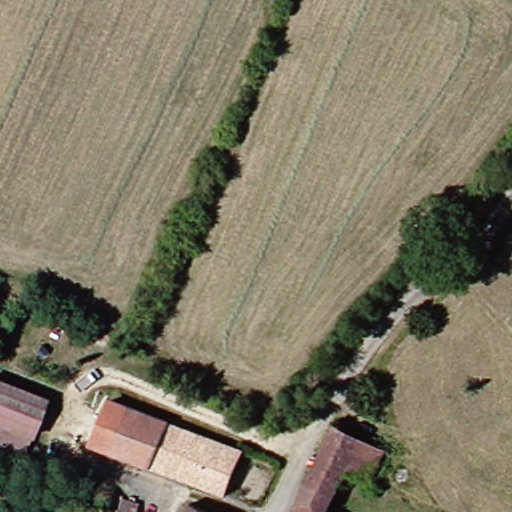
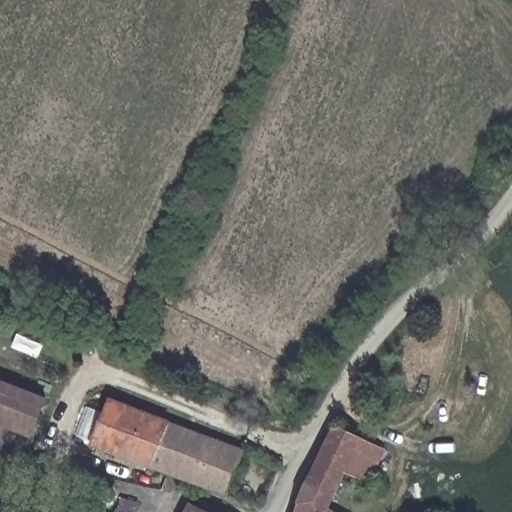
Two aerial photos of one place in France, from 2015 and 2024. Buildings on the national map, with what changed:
unchanged [(0,379),(52,401),(34,440),(0,426),(0,379)]
unchanged [(246,453),(227,496),(97,446),(112,400),(246,453)]
unchanged [(340,424),(385,447),(372,481),(347,468),(328,506),(338,512),(298,512),(307,488),(340,424)]
unchanged [(0,449),(0,426),(34,440),(27,461),(0,449)]
unchanged [(142,512),(108,512),(114,493),(146,501),(142,512)]
unchanged [(207,512),(190,512),(193,505),(207,512)]
unchanged [(103,512),(90,512),(91,508),(103,512)]

